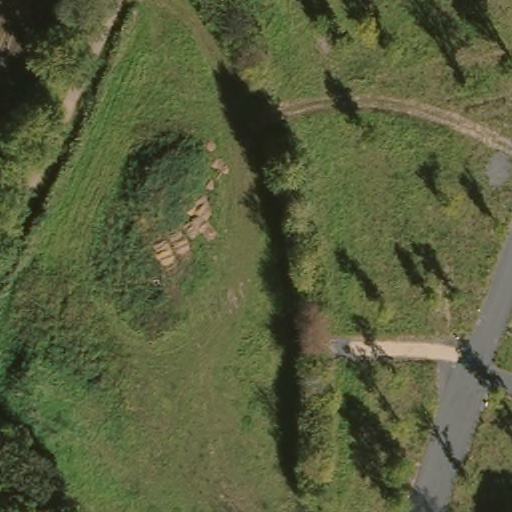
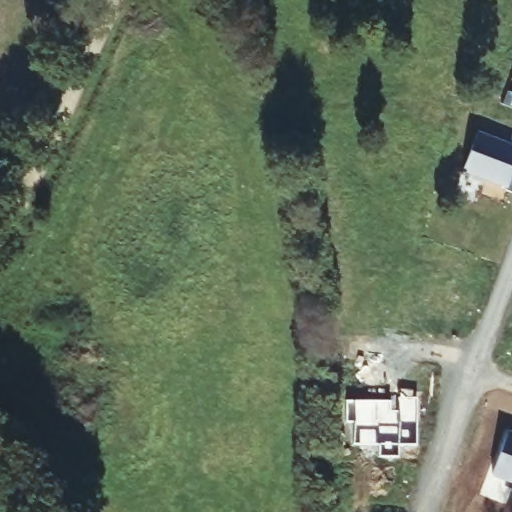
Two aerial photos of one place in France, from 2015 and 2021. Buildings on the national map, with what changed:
new [(478,132),(512,147),(512,191),(463,170),(478,132)]

